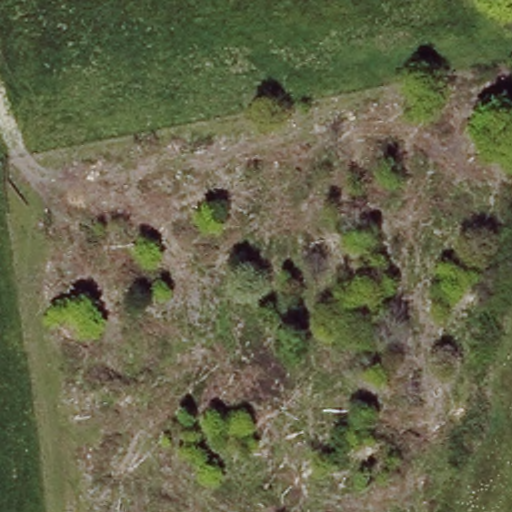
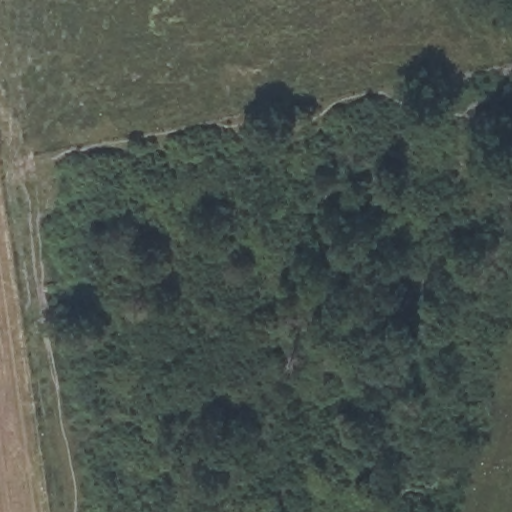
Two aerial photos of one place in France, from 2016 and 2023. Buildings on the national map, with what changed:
[]

